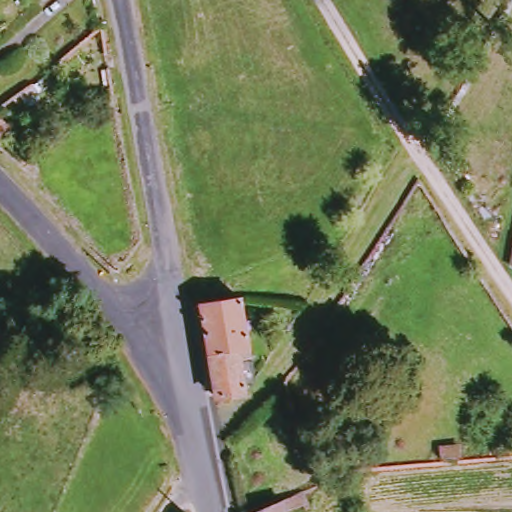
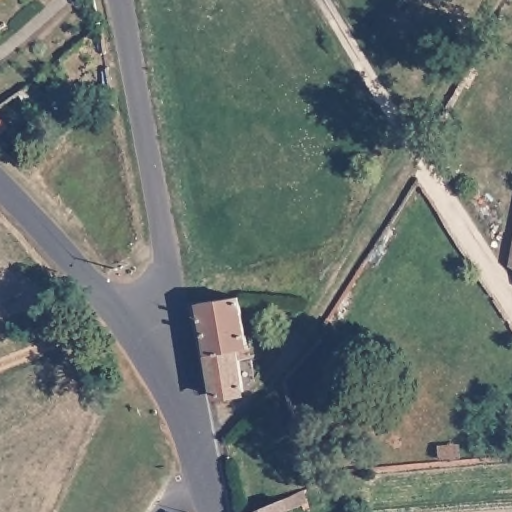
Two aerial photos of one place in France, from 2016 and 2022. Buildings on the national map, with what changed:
unchanged [(247,393),(218,398),(202,306),(243,299),(245,306),(254,356),(261,383),(247,393)]
unchanged [(314,506),(300,512),(267,512),(308,494),(314,506)]

